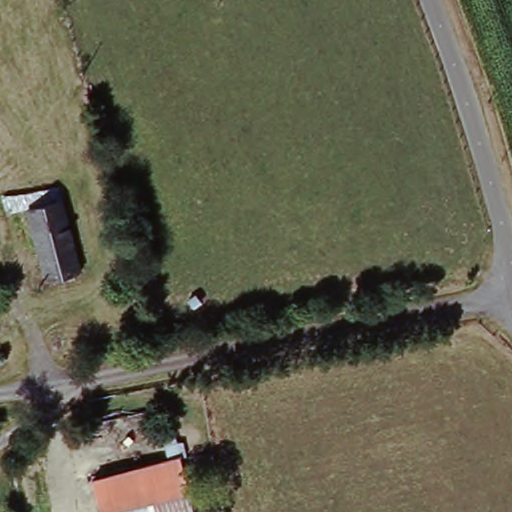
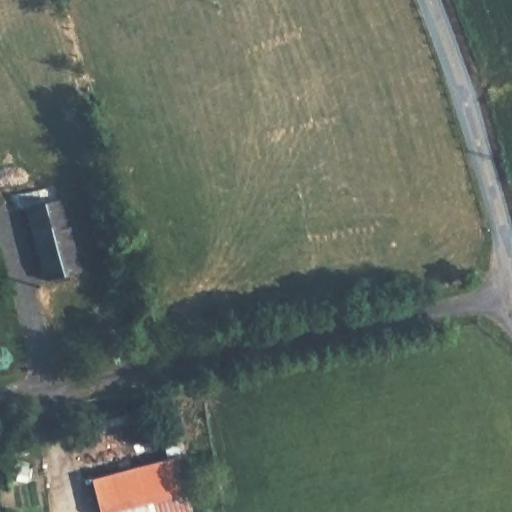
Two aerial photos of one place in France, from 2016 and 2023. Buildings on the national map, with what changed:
unchanged [(71,199),(85,273),(55,280),(41,206),(71,199)]
unchanged [(131,512),(104,512),(97,483),(178,459),(194,512),(156,512),(154,504),(131,512)]

